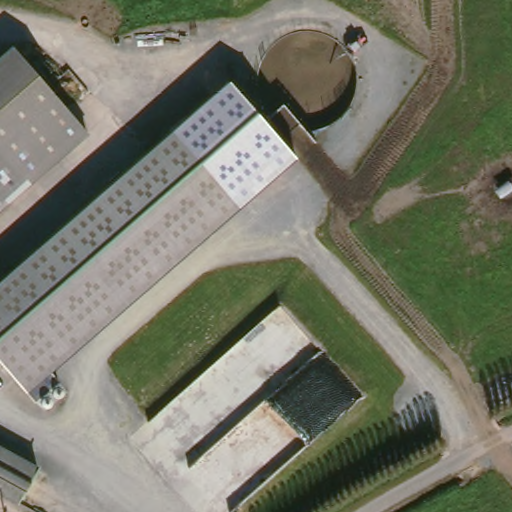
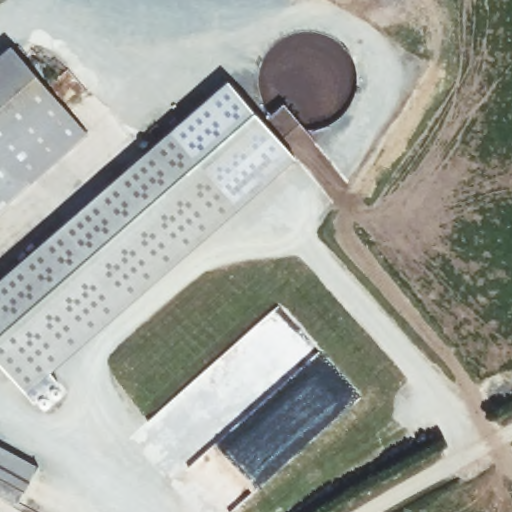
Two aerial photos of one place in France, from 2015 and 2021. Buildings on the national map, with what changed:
unchanged [(0,208),(0,55),(20,38),(92,129),(0,208)]
unchanged [(298,163),(18,401),(0,384),(0,269),(227,78),(298,163)]
unchanged [(18,495),(0,485),(0,439),(37,459),(18,495)]

